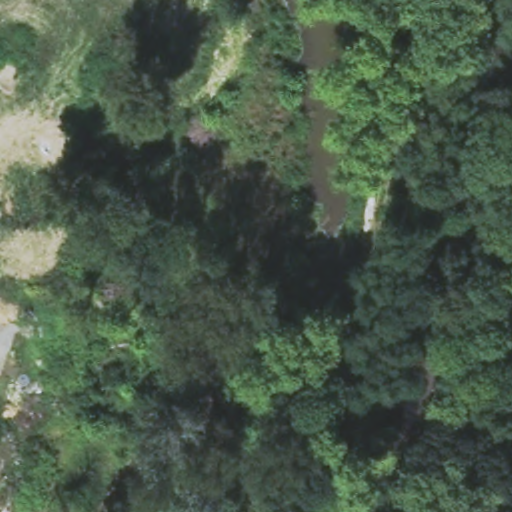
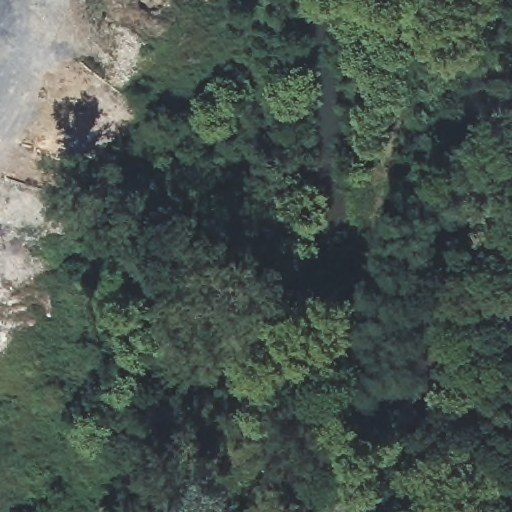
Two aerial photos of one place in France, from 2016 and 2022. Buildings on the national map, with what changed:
[]

